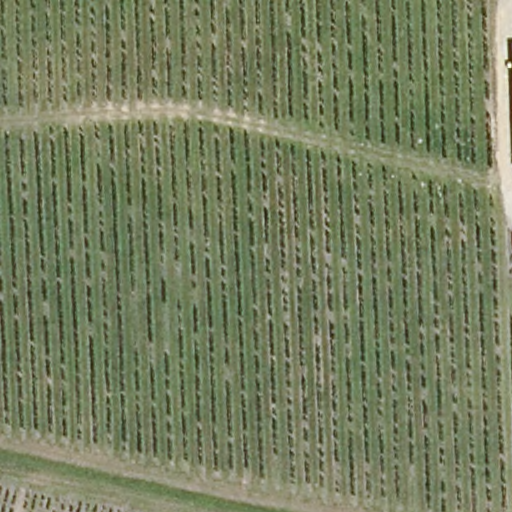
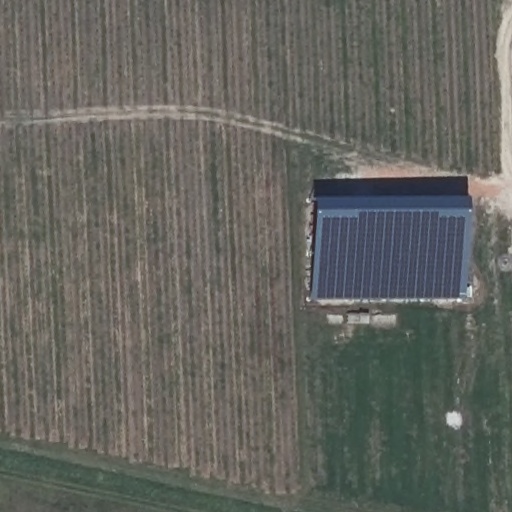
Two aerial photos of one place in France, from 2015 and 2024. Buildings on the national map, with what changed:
new [(512,43),(512,103),(508,43),(512,43)]
new [(307,199),(460,199),(459,302),(305,302),(307,199)]

